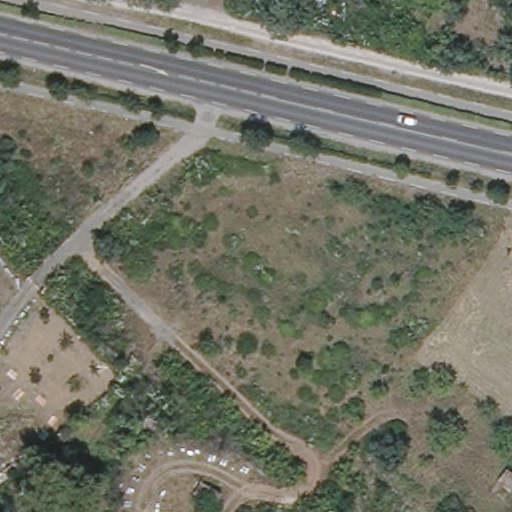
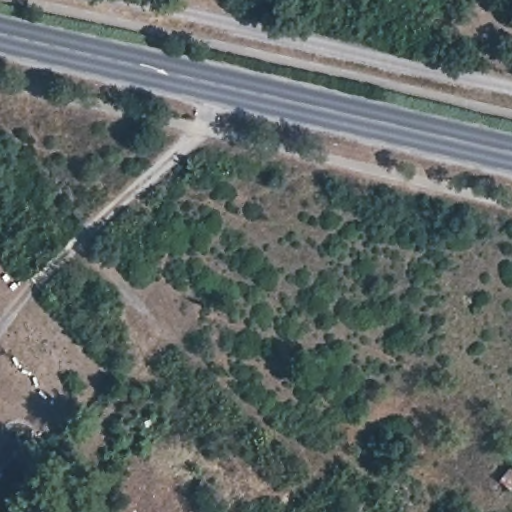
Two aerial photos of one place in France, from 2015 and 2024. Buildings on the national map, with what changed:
unchanged [(491,491),(508,472),(512,475),(512,492),(503,503),(491,491)]
unchanged [(196,473),(223,487),(214,503),(184,490),(196,473)]

